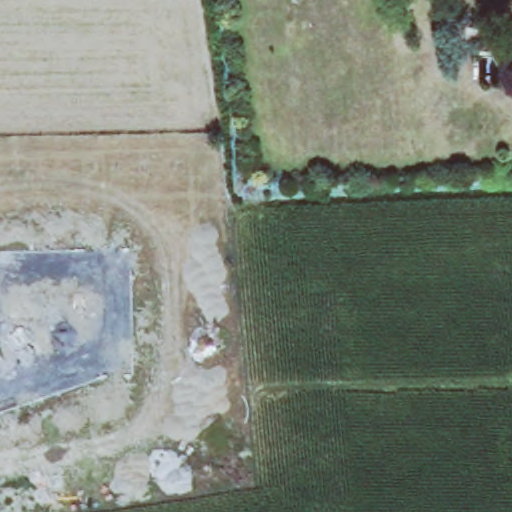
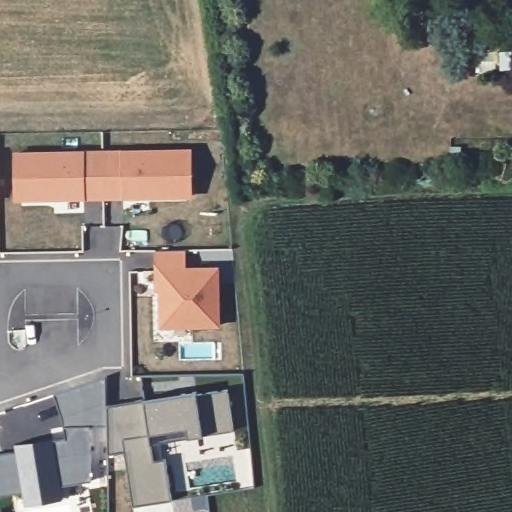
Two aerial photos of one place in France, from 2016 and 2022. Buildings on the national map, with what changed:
new [(191,151),(191,196),(104,197),(104,152),(191,151)]
new [(104,152),(104,197),(17,198),(17,153),(104,152)]
new [(186,250),(186,269),(219,268),(220,326),(167,327),(162,322),(162,284),(158,284),(157,250),(186,250)]
demolished [(37,288),(77,287),(77,296),(91,296),(91,322),(37,324),(37,288)]
new [(26,505),(25,500),(24,492),(0,495),(0,454),(17,451),(17,449),(16,444),(53,438),(54,440),(66,438),(63,419),(55,394),(106,377),(107,406),(107,427),(91,427),(92,481),(61,486),(62,494),(63,499),(26,505)]
new [(203,436),(204,440),(189,442),(188,437),(150,444),(153,461),(165,459),(171,501),(132,507),(125,453),(107,455),(107,406),(145,403),(144,400),(196,392),(196,395),(227,390),(234,431),(203,436)]

